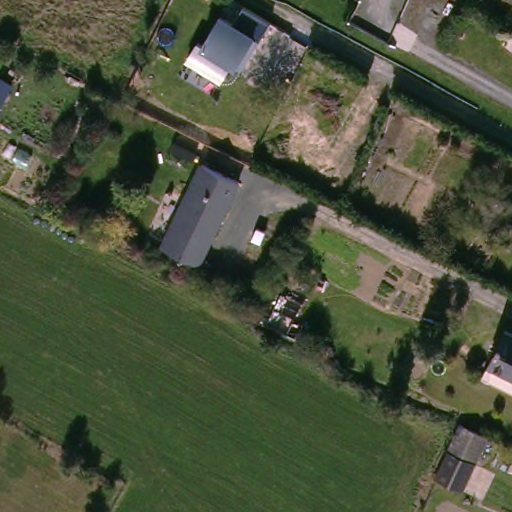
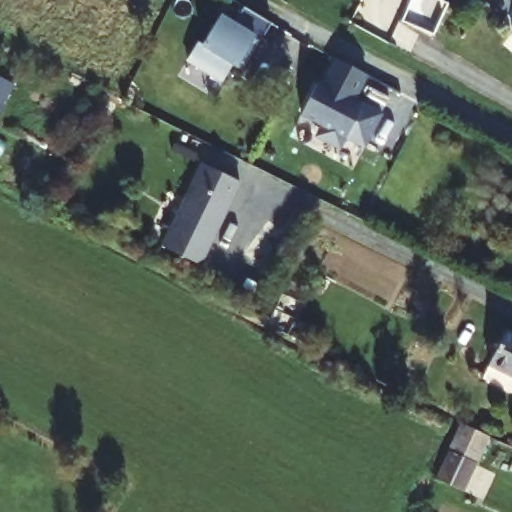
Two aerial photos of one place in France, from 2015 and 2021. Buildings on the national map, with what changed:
unchanged [(270,22),(256,35),(236,68),(231,65),(224,79),(187,55),(195,41),(202,43),(220,10),(234,20),(244,5),(270,22)]
demolished [(0,81),(0,43),(16,50),(0,81)]
new [(321,83),(335,56),(368,74),(355,98),(362,102),(383,113),(365,146),(346,136),(342,144),(317,131),(321,123),(301,112),(317,81),(321,83)]
unchanged [(0,116),(0,74),(17,82),(0,116)]
unchanged [(252,180),(212,262),(174,244),(214,161),(252,180)]
unchanged [(495,376),(512,342),(512,385),(495,376)]
unchanged [(490,432),(465,485),(445,476),(471,423),(490,432)]

